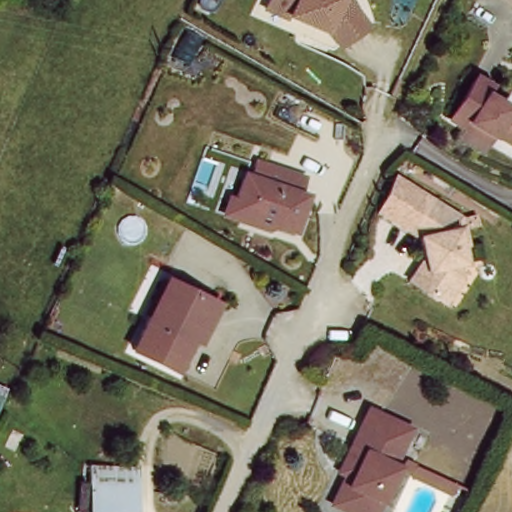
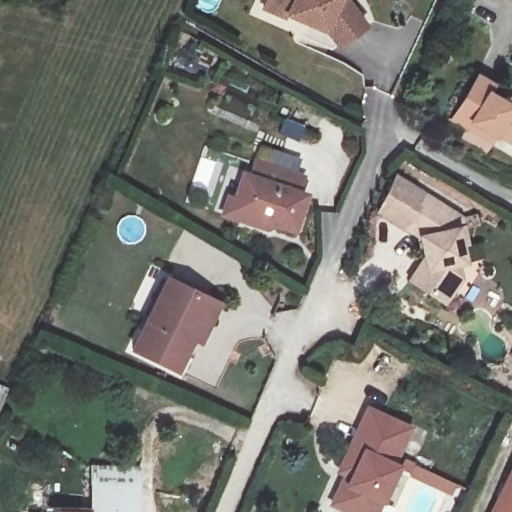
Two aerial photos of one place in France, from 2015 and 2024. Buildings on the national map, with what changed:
unchanged [(340,2),(364,23),(339,52),(314,33),(306,28),(310,18),(297,9),(292,18),(283,11),(281,15),(260,2),(262,0),(336,0),(340,2)]
unchanged [(448,115),(474,68),(496,80),(492,88),(512,100),(512,152),(472,129),(448,115)]
unchanged [(289,189),(281,203),(288,207),(280,223),(261,227),(269,243),(258,264),(243,256),(231,261),(215,252),(228,229),(210,218),(227,184),(232,186),(243,166),(289,189)]
unchanged [(422,260),(417,245),(386,226),(368,215),(388,179),(405,189),(405,188),(441,208),(457,217),(463,236),(468,255),(457,256),(466,284),(452,312),(418,292),(408,286),(422,260)]
unchanged [(126,349),(157,280),(206,304),(217,308),(199,347),(189,343),(176,372),(126,349)]
unchanged [(333,472),(346,446),(354,450),(371,416),(402,432),(387,461),(396,466),(372,512),(351,512),(346,509),(328,499),(340,476),(333,472)]
new [(512,512),(488,512),(512,463),(512,512)]
unchanged [(39,512),(40,498),(91,500),(92,480),(140,483),(138,512),(39,512)]

